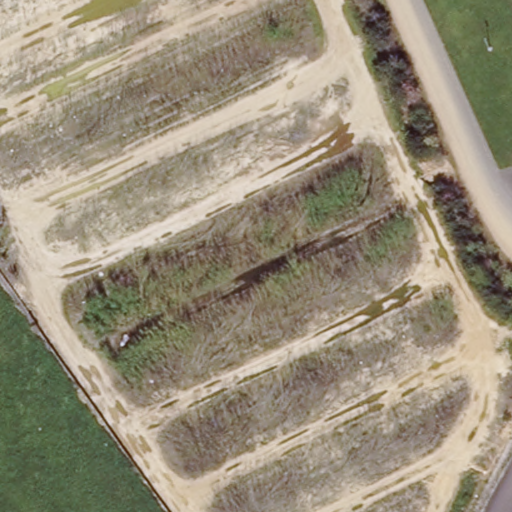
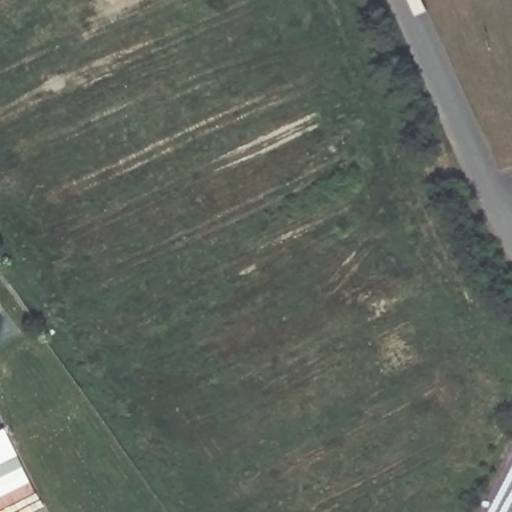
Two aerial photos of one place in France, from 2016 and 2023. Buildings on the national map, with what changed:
new [(0,510),(0,432),(6,429),(35,492),(0,510)]

